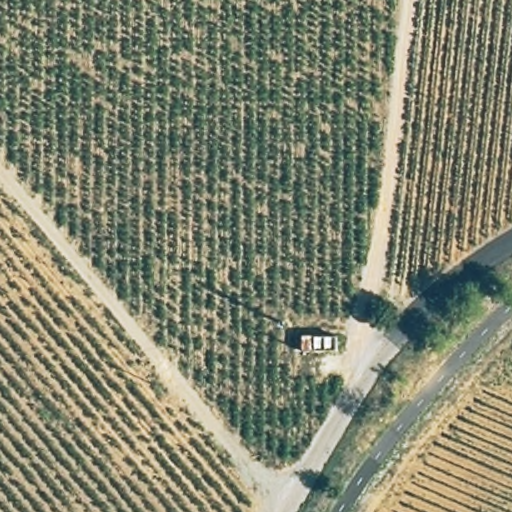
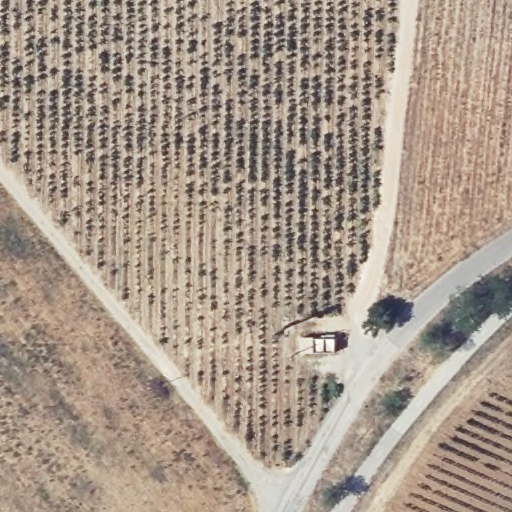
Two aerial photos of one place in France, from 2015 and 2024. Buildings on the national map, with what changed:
unchanged [(335,352),(301,351),(301,337),(335,337),(335,352)]

